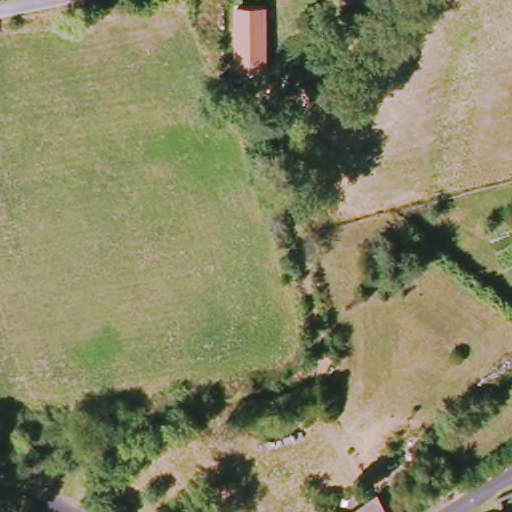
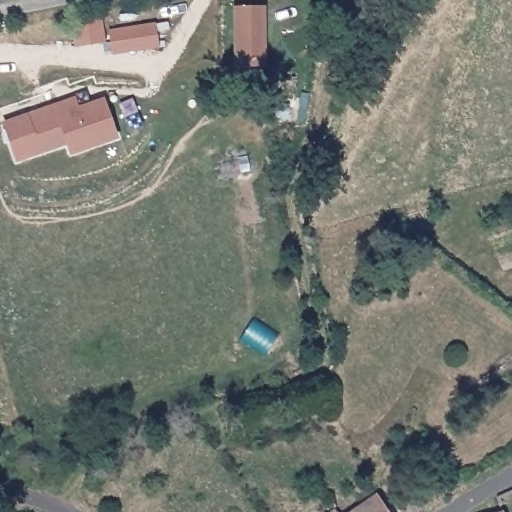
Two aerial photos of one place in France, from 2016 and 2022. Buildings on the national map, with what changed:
unchanged [(266,6),(268,56),(233,61),(234,6),(266,6)]
new [(159,48),(113,55),(109,31),(155,23),(159,48)]
new [(67,144),(17,161),(3,123),(76,98),(79,106),(104,99),(118,139),(70,155),(67,144)]
unchanged [(376,503),(381,512),(362,512),(376,503)]

